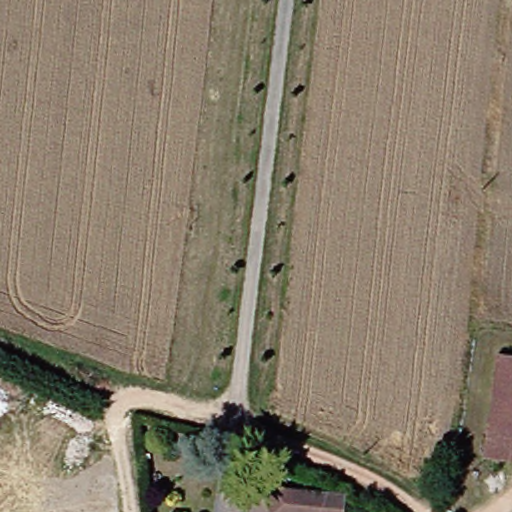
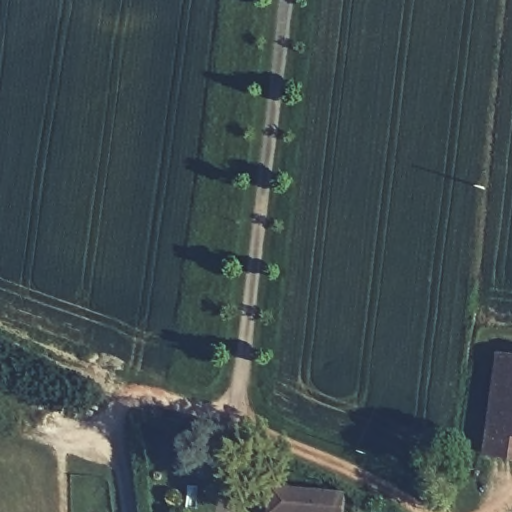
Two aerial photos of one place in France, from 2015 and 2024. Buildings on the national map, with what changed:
unchanged [(486,458),(488,435),(498,353),(512,355),(512,461),(486,458)]
unchanged [(276,512),(278,484),(351,491),(354,493),(352,512),(276,512)]

